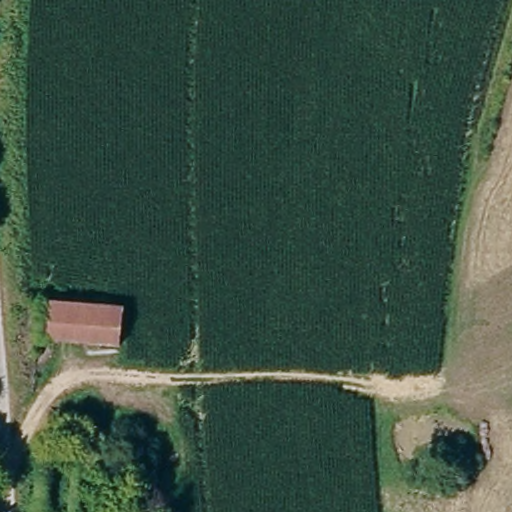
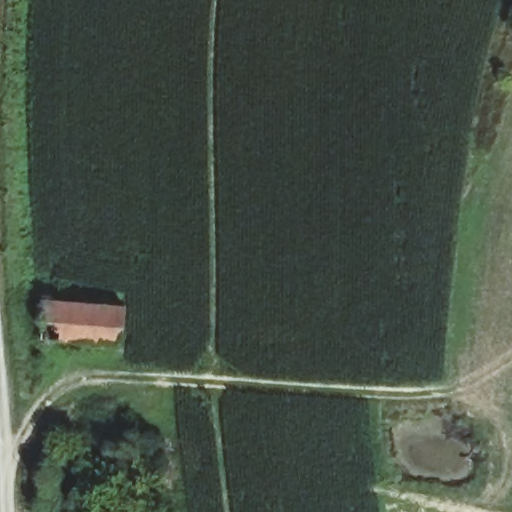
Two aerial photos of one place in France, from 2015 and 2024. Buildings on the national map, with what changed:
unchanged [(40,340),(41,299),(121,303),(121,345),(40,340)]

